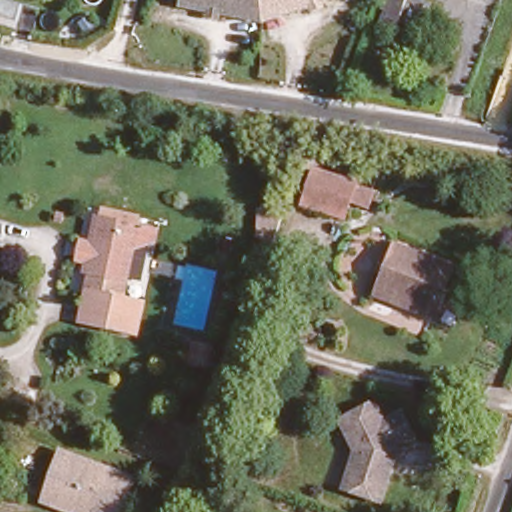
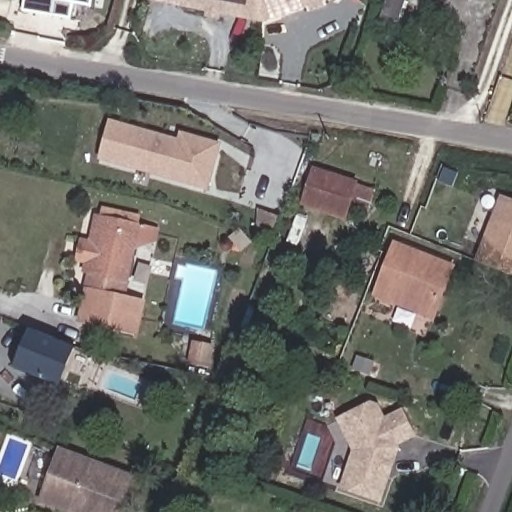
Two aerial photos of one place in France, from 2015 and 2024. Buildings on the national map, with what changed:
new [(91,7),(74,4),(71,20),(23,11),(24,0),(92,0),(91,7)]
new [(146,1),(147,0),(176,0),(175,7),(146,1)]
unchanged [(259,24),(175,7),(176,0),(331,0),(259,24)]
unchanged [(378,25),(387,0),(406,0),(394,32),(378,25)]
new [(208,191),(98,160),(109,120),(180,138),(181,132),(221,144),(208,191)]
unchanged [(316,166),(357,180),(346,210),(306,196),(316,166)]
new [(474,261),(500,195),(512,200),(512,277),(474,261)]
unchanged [(141,227),(124,300),(146,304),(136,340),(82,326),(90,292),(86,292),(88,280),(85,276),(88,265),(79,263),(83,244),(93,246),(100,220),(141,227)]
unchanged [(371,296),(375,286),(391,243),(451,265),(434,308),(431,318),(371,296)]
new [(13,370),(28,330),(74,347),(59,385),(13,370)]
unchanged [(187,365),(190,348),(208,351),(205,368),(187,365)]
unchanged [(339,489),(352,452),(337,421),(370,406),(375,408),(382,422),(401,413),(412,437),(394,446),(396,450),(392,460),(386,463),(383,473),(385,479),(377,502),(339,489)]
unchanged [(130,512),(75,512),(39,497),(58,450),(141,483),(130,512)]

